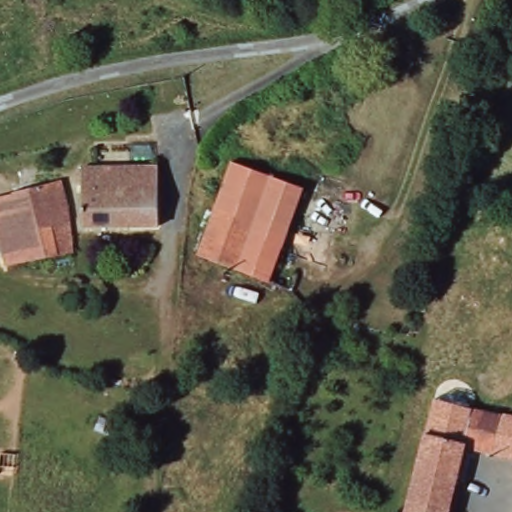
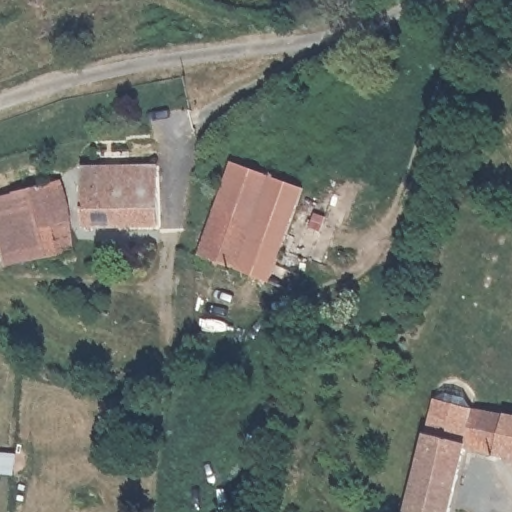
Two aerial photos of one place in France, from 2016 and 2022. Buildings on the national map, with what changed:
unchanged [(131,163),(131,146),(160,146),(160,223),(85,223),(84,165),(131,163)]
unchanged [(234,164),(308,187),(265,284),(198,254),(204,237),(228,179),(234,164)]
unchanged [(75,181),(81,221),(76,222),(82,252),(14,261),(4,190),(75,181)]
unchanged [(470,445),(450,512),(410,512),(407,510),(413,489),(413,487),(428,430),(451,435),(454,424),(469,427),(475,407),(486,409),(512,414),(512,453),(470,445)]

